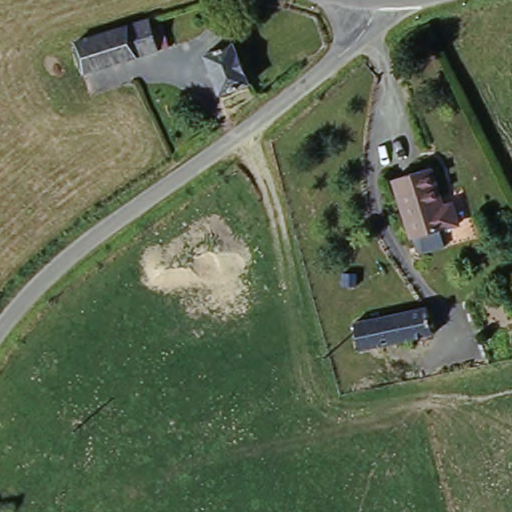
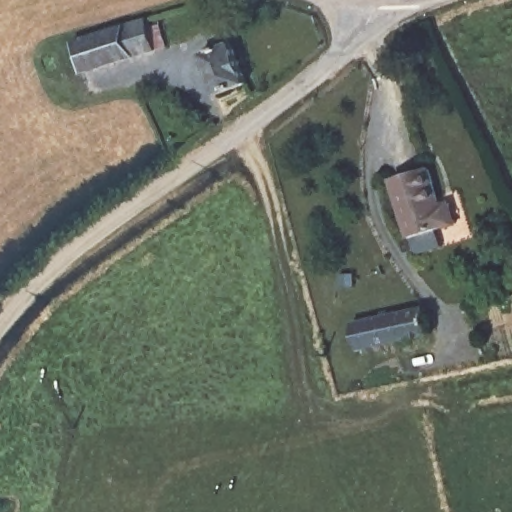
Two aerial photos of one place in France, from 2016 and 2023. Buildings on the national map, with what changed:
unchanged [(143,57),(82,74),(71,42),(135,24),(143,57)]
unchanged [(234,50),(249,91),(222,100),(207,62),(234,50)]
unchanged [(441,209),(450,207),(456,227),(443,233),(446,249),(424,256),(416,250),(393,184),(428,172),(441,209)]
unchanged [(442,335),(355,355),(349,328),(436,308),(442,335)]

